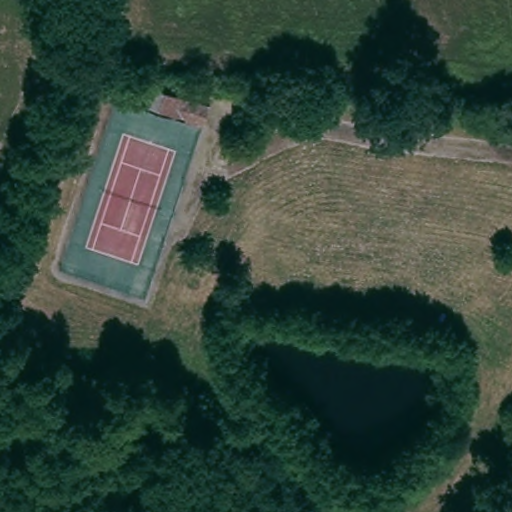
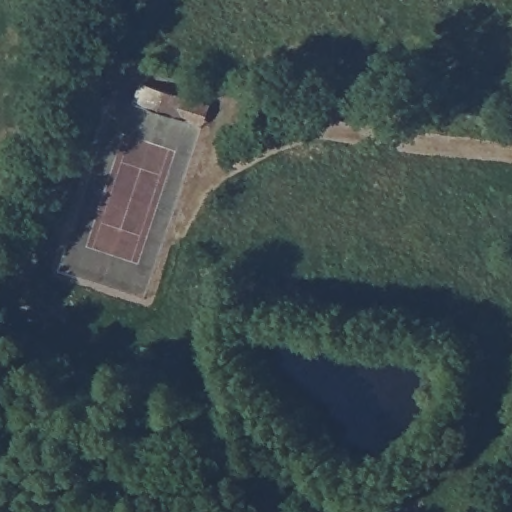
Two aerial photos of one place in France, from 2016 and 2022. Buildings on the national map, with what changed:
unchanged [(214,106),(207,126),(163,110),(167,88),(214,106)]

